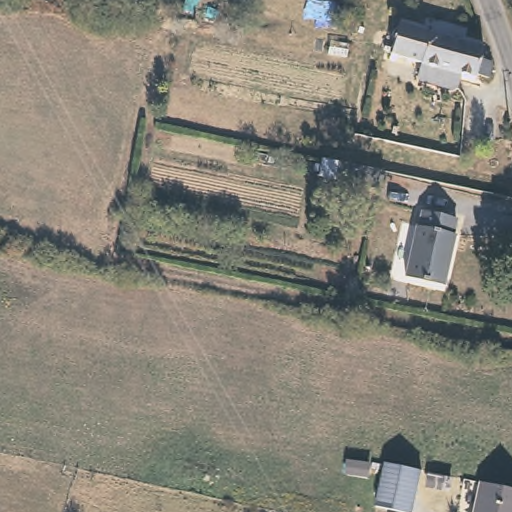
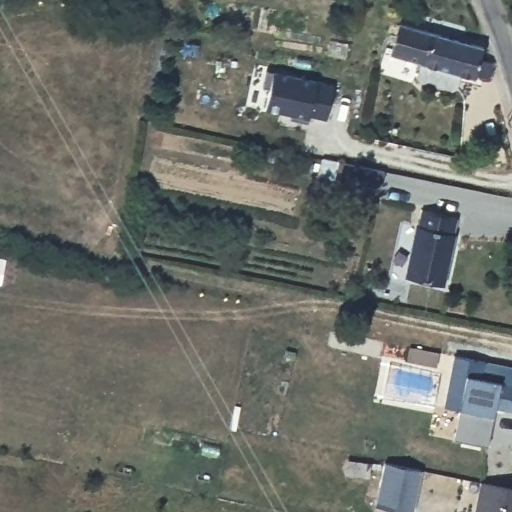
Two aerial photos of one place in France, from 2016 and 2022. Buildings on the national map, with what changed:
unchanged [(485,47),(482,58),(492,61),(489,77),(478,74),(477,77),(409,57),(392,53),(400,22),(485,47)]
new [(307,122),(287,117),(289,114),(264,108),(274,70),(314,81),(334,86),(327,119),(310,114),(309,118),(307,122)]
unchanged [(376,171),(384,172),(379,190),(320,177),(324,158),(376,171)]
unchanged [(454,215),(451,235),(454,236),(443,286),(404,279),(415,226),(419,226),(423,209),(454,215)]
new [(488,445),(451,439),(459,409),(443,406),(454,356),(512,368),(512,411),(496,406),(492,416),(488,445)]
unchanged [(413,512),(408,512),(376,505),(386,462),(423,469),(413,512)]
unchanged [(512,487),(512,512),(477,512),(484,481),(512,487)]

